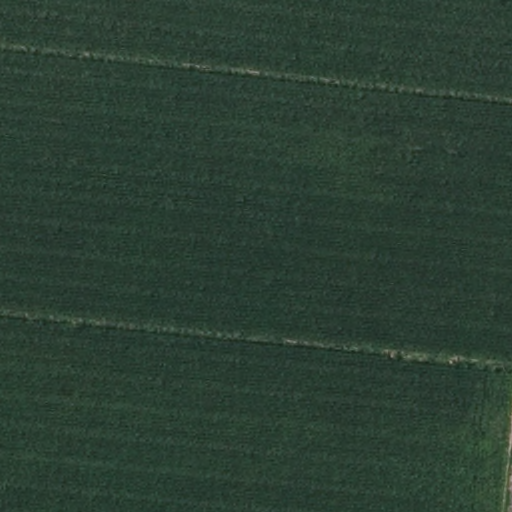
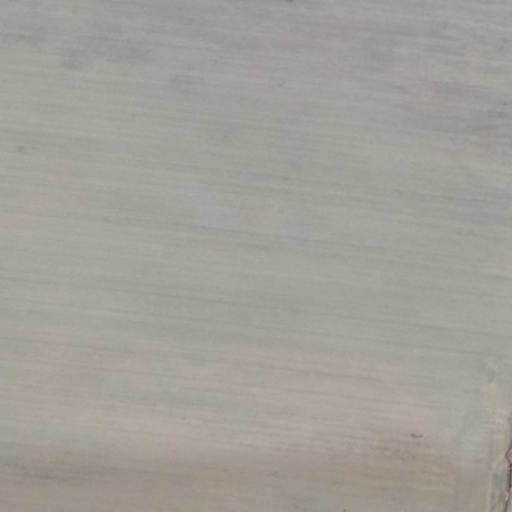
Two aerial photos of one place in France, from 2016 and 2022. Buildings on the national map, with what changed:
[]

